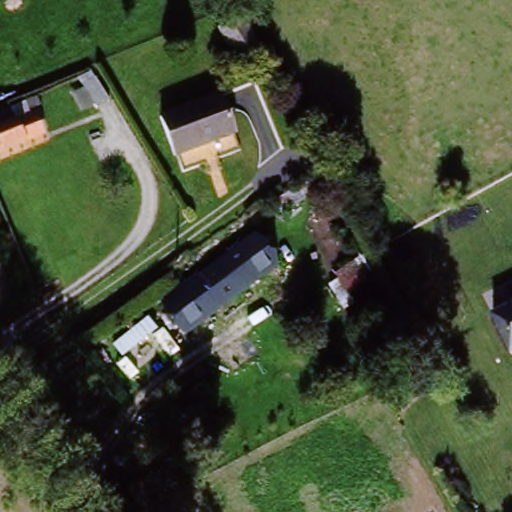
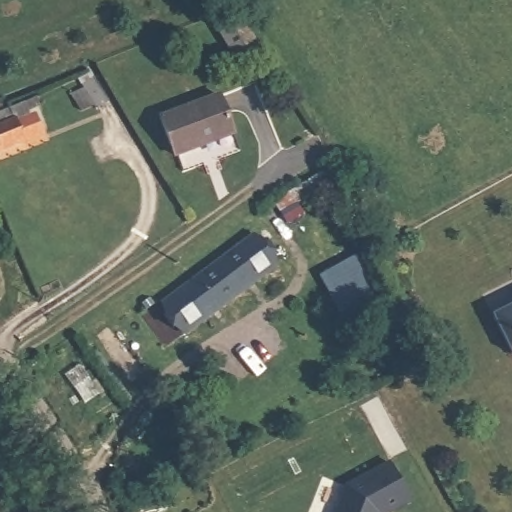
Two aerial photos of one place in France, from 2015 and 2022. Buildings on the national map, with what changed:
unchanged [(241,17),(264,54),(242,68),(215,33),(241,17)]
unchanged [(97,110),(83,86),(95,80),(108,104),(97,110)]
unchanged [(235,135),(182,157),(167,122),(220,97),(235,135)]
unchanged [(19,123),(35,116),(45,136),(27,144),(0,155),(0,129),(18,122),(19,123)]
unchanged [(275,267),(207,316),(192,297),(217,280),(207,267),(241,245),(248,257),(260,247),(275,267)]
unchanged [(337,282),(333,278),(353,262),(373,294),(345,312),(327,288),(337,282)]
unchanged [(493,311),(512,302),(512,351),(493,311)]
new [(413,502),(394,512),(335,512),(347,486),(390,461),(413,502)]

